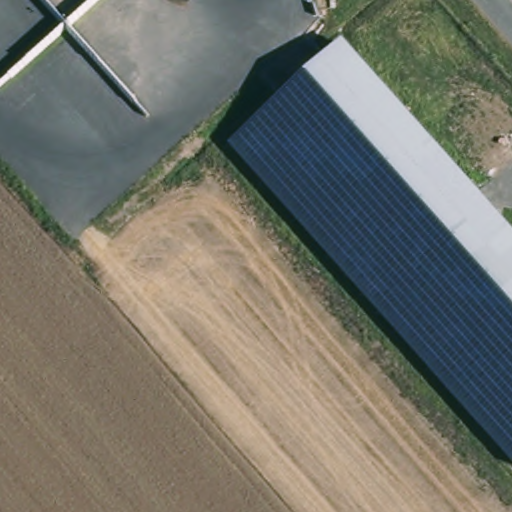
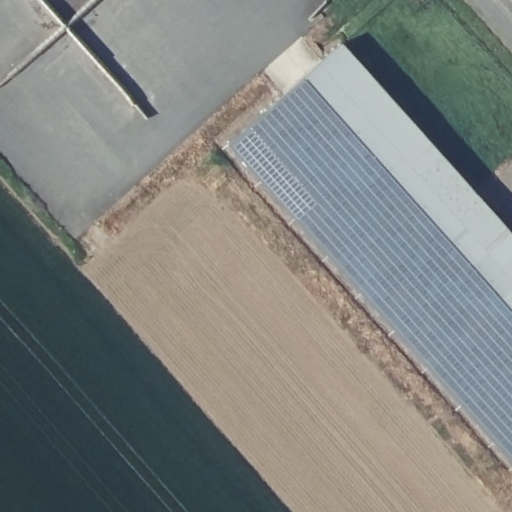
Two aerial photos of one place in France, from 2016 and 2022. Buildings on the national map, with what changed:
unchanged [(270,101),(338,41),(486,208),(512,237),(512,289),(464,335),(263,108),(266,105),(270,101)]
unchanged [(512,289),(512,468),(510,470),(225,144),(263,108),(464,335),(512,289)]

